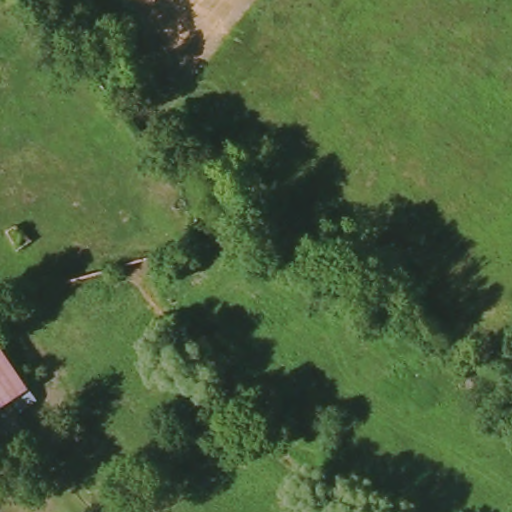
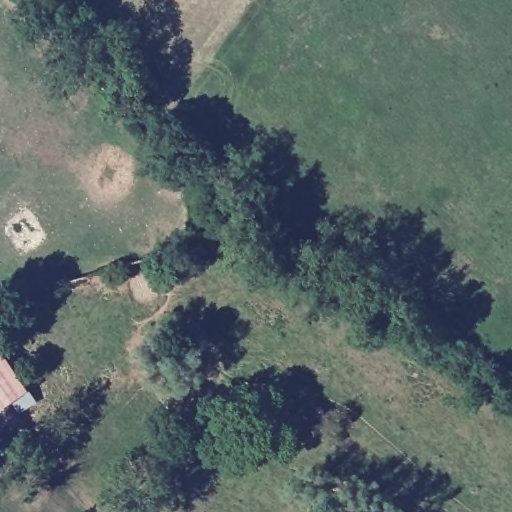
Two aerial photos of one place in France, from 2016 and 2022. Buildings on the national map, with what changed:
unchanged [(22,387),(0,408),(0,364),(22,387)]

